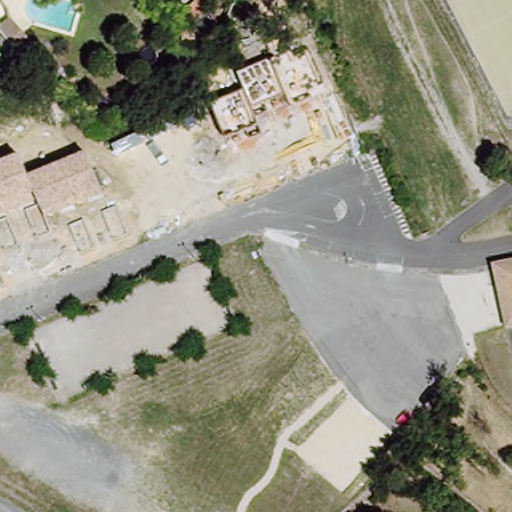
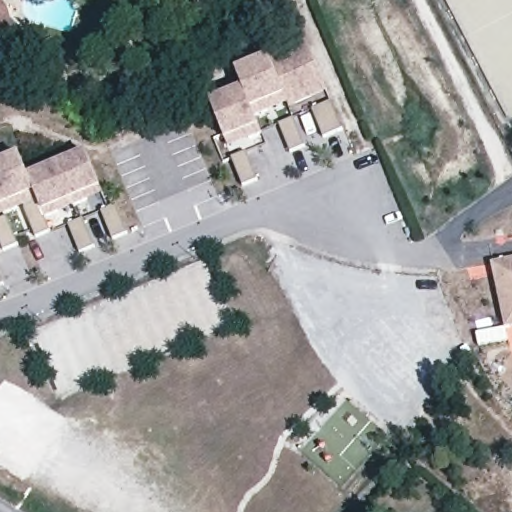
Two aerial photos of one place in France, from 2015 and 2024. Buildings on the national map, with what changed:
unchanged [(5,15),(25,41),(7,54),(0,45),(0,19),(5,15)]
new [(244,87),(237,70),(268,58),(269,58),(305,43),(325,92),(287,108),(285,104),(255,116),(258,127),(263,136),(229,147),(227,138),(212,101),(244,87)]
unchanged [(20,155),(29,175),(87,152),(98,184),(102,194),(45,217),(42,211),(37,200),(0,215),(0,163),(20,155)]
unchanged [(512,259),(512,327),(502,329),(490,265),(512,259)]

